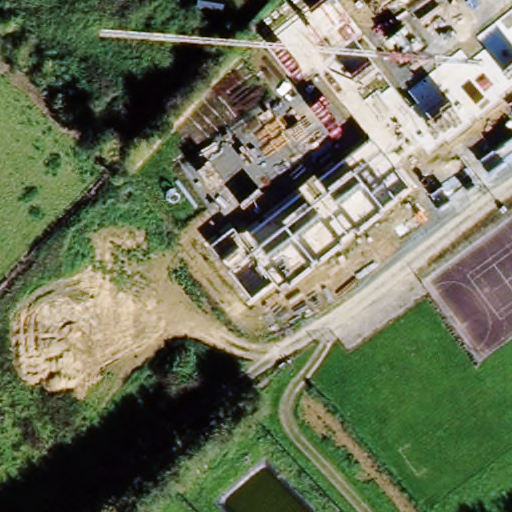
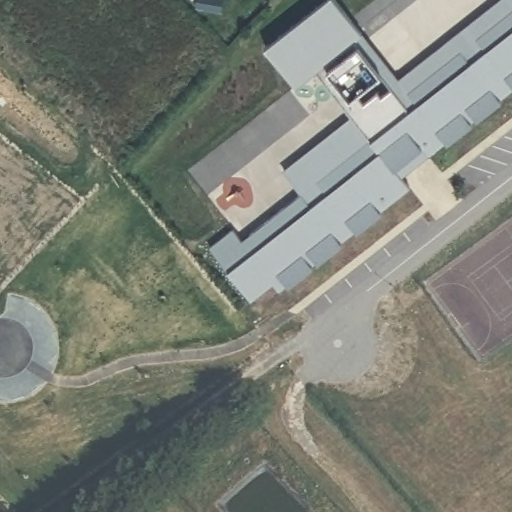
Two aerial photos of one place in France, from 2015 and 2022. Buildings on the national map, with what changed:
new [(512,94),(450,144),(447,141),(401,179),(409,189),(290,285),(287,283),(280,291),(273,284),(250,300),(209,247),(233,228),(243,240),(302,193),(282,169),(352,116),(317,70),(296,86),(265,47),(324,0),(336,0),(362,32),(398,78),(499,0),(512,0),(512,94)]

